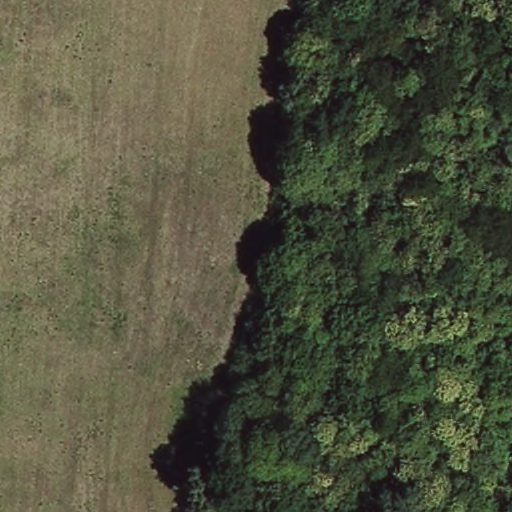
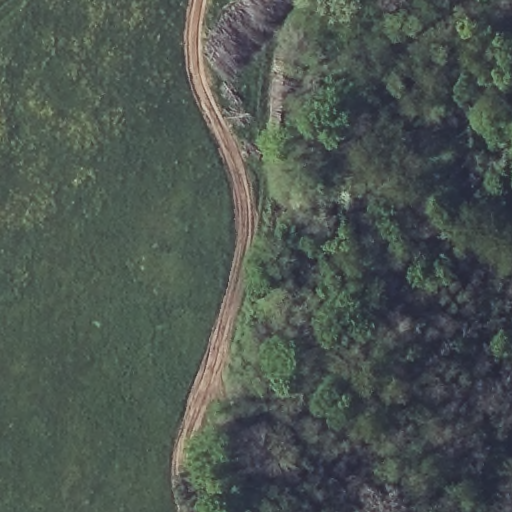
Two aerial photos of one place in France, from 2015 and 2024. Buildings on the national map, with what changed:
[]

